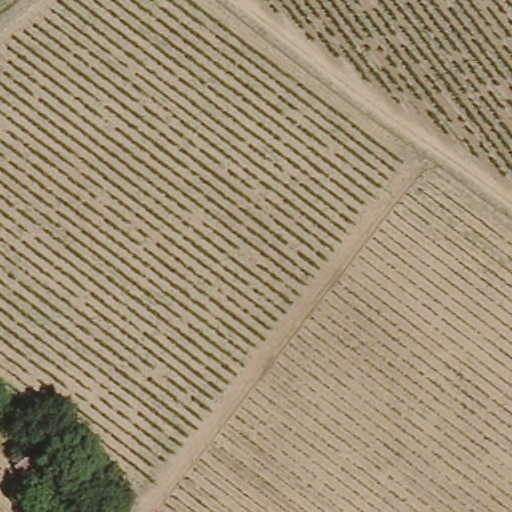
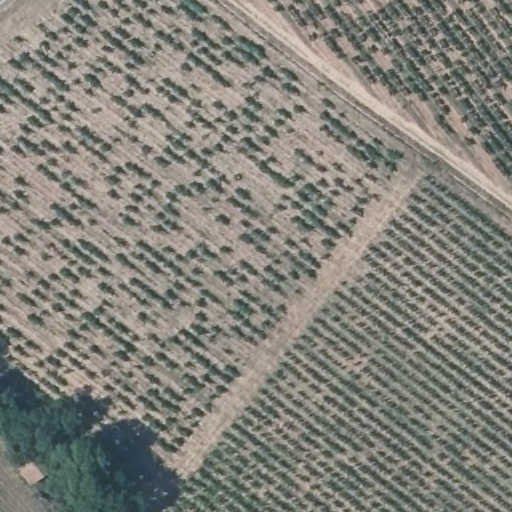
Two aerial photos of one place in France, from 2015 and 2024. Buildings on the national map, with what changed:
unchanged [(8,468),(25,449),(40,464),(23,482),(8,468)]

